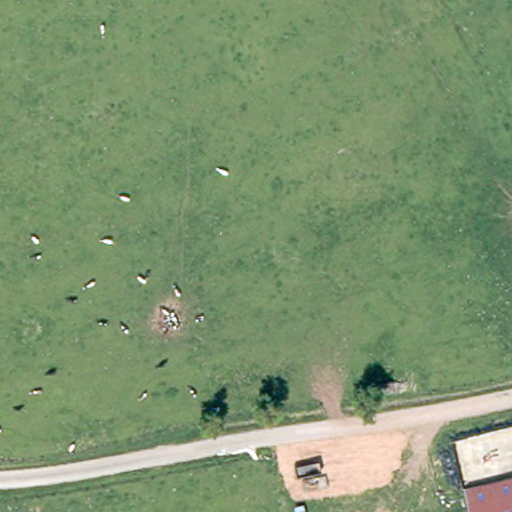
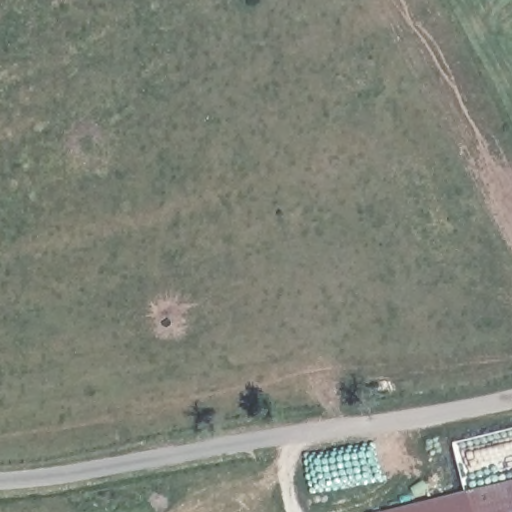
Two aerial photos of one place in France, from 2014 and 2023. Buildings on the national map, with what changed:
unchanged [(470,485),(512,475),(512,512),(476,512),(470,485)]
new [(476,512),(374,512),(470,485),(476,512)]

